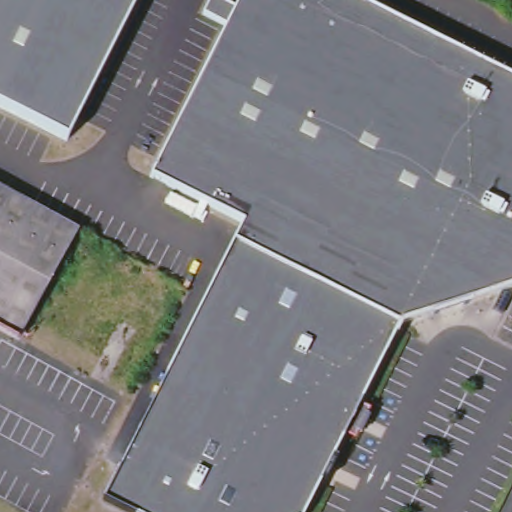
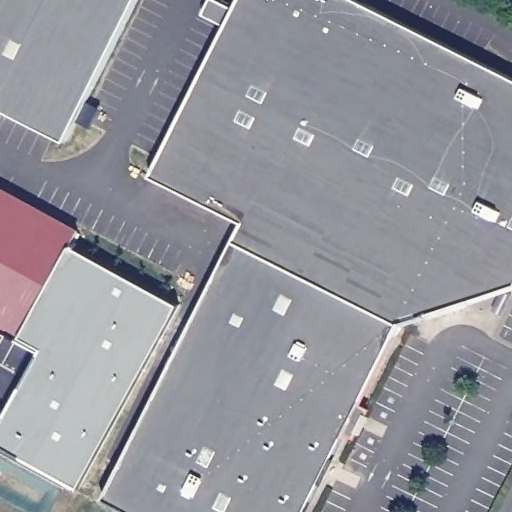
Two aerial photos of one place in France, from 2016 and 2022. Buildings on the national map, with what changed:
unchanged [(0,105),(0,0),(132,0),(63,137),(0,105)]
unchanged [(512,288),(395,326),(301,512),(119,512),(97,501),(237,225),(145,178),(222,28),(198,16),(207,0),(210,0),(230,10),(236,0),(352,0),(512,81),(512,288)]
unchanged [(0,327),(0,190),(75,231),(16,336),(0,327)]
new [(16,336),(67,243),(180,305),(80,488),(0,443),(0,428),(41,353),(16,336)]

